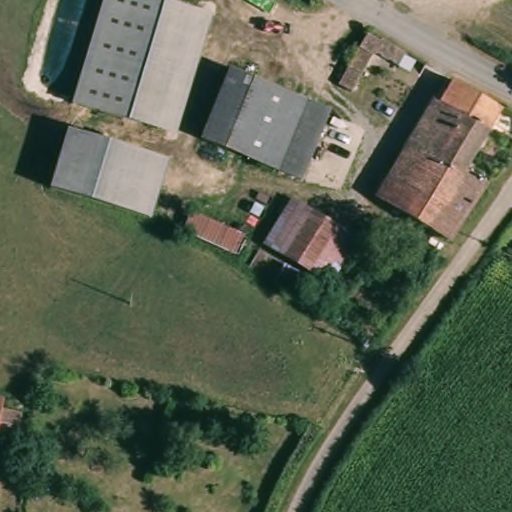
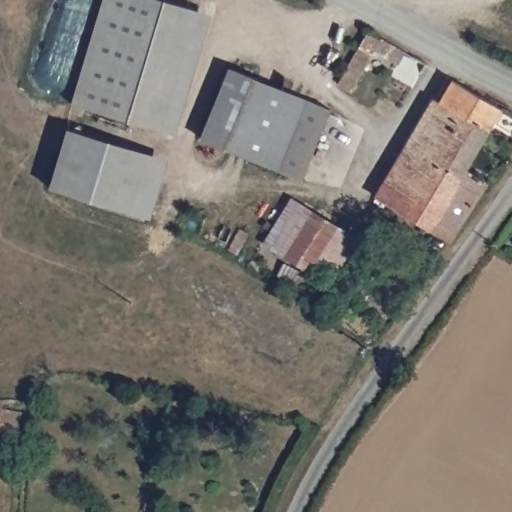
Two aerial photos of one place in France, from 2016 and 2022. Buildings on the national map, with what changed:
unchanged [(204,22),(202,25),(164,129),(160,140),(61,104),(100,0),(144,0),(172,10),(204,22)]
unchanged [(396,60),(380,51),(356,87),(341,80),(372,29),(402,49),(396,60)]
unchanged [(233,66),(303,96),(275,162),(205,132),(233,66)]
unchanged [(493,134),(451,109),(466,85),(468,87),(509,113),(494,135),(493,134)]
unchanged [(334,110),(305,180),(275,168),(275,162),(292,122),(298,109),(303,96),(334,110)]
unchanged [(470,170),(490,184),(488,187),(449,243),(425,227),(382,200),(441,102),(451,109),(493,134),(470,170)]
unchanged [(140,220),(41,185),(62,127),(161,164),(140,220)]
unchanged [(356,237),(330,280),(267,241),(294,197),(356,237)]
unchanged [(242,258),(182,234),(191,212),(251,236),(242,258)]
unchanged [(0,436),(0,398),(18,402),(15,416),(29,421),(24,441),(0,436)]

